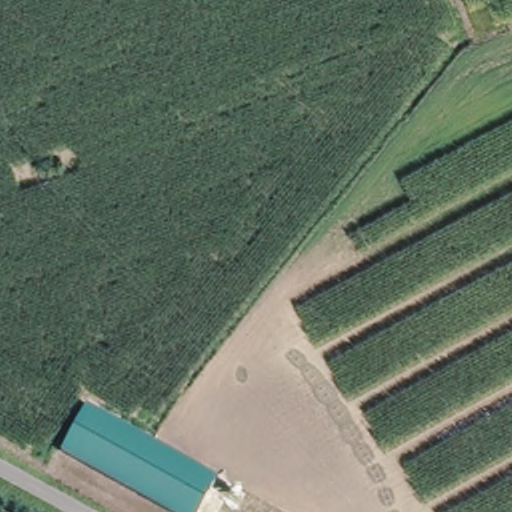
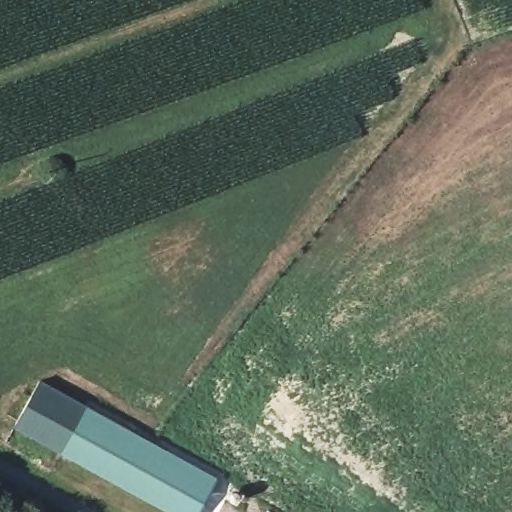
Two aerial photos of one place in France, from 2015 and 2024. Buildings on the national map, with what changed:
new [(67,450),(15,425),(40,380),(90,408),(67,450)]
unchanged [(90,408),(216,479),(197,512),(180,512),(67,450),(90,408)]

